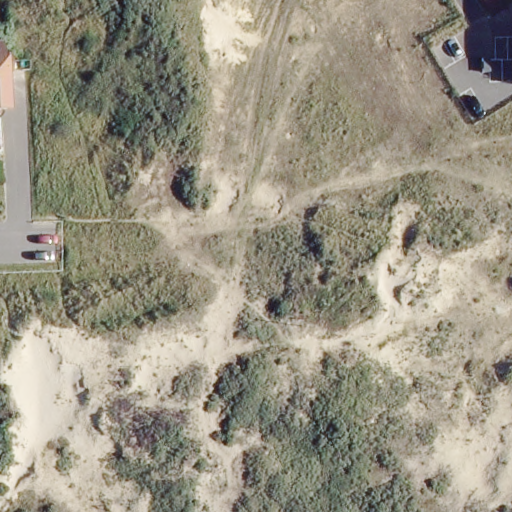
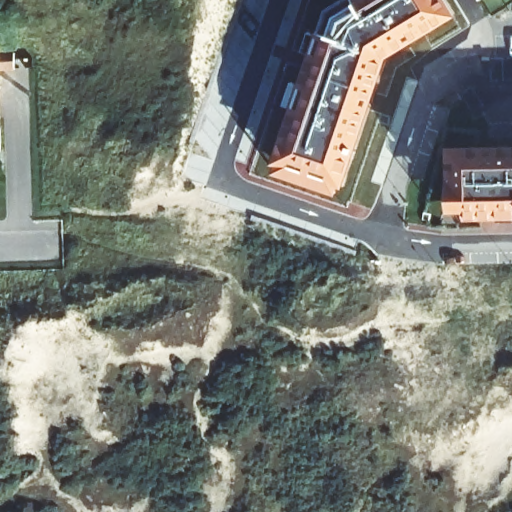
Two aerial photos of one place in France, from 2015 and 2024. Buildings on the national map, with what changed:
new [(386,59),(343,189),(338,188),(335,195),(271,172),(274,164),(271,162),(324,9),(339,0),(446,0),(454,15),(386,59)]
unchanged [(479,0),(485,0),(481,2),(479,0)]
unchanged [(11,64),(0,65),(0,49),(11,48),(11,64)]
new [(512,151),(512,220),(461,220),(459,212),(449,212),(446,152),(512,151)]

